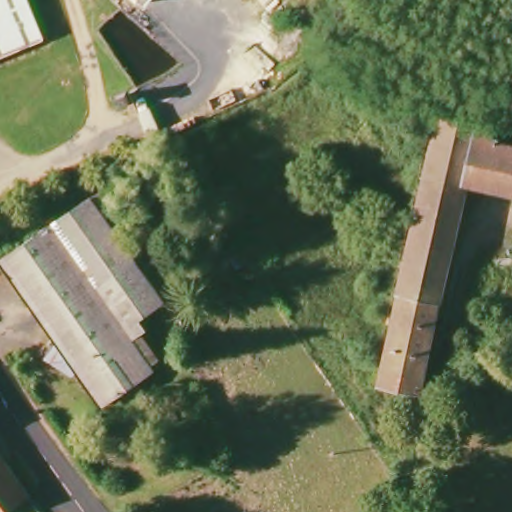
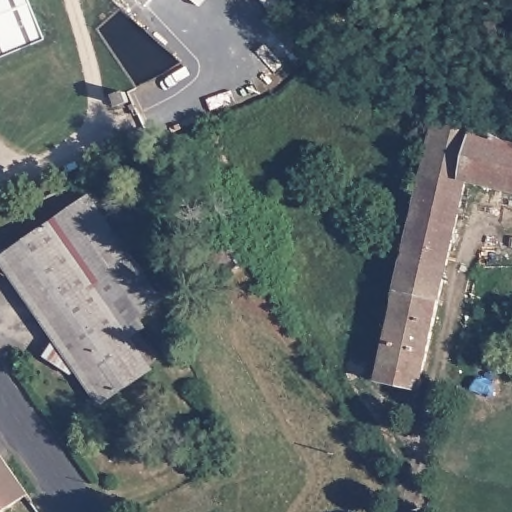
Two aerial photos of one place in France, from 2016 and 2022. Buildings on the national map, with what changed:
unchanged [(0,55),(0,0),(30,0),(44,36),(0,55)]
unchanged [(148,6),(141,0),(153,0),(148,6)]
unchanged [(119,110),(115,99),(128,96),(131,106),(119,110)]
unchanged [(502,143),(512,146),(512,192),(468,182),(449,262),(420,391),(377,381),(438,111),(502,143)]
unchanged [(512,120),(512,137),(508,136),(512,120)]
unchanged [(160,300),(149,308),(120,328),(149,370),(98,405),(76,372),(68,377),(43,361),(55,343),(0,264),(0,258),(89,198),(139,270),(152,288),(160,300)]
unchanged [(0,512),(0,459),(25,495),(0,512)]

